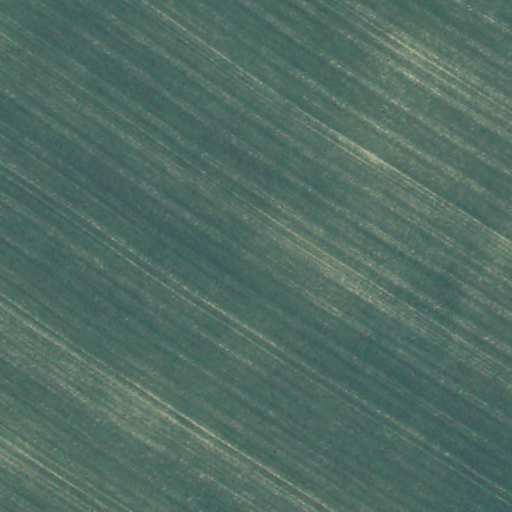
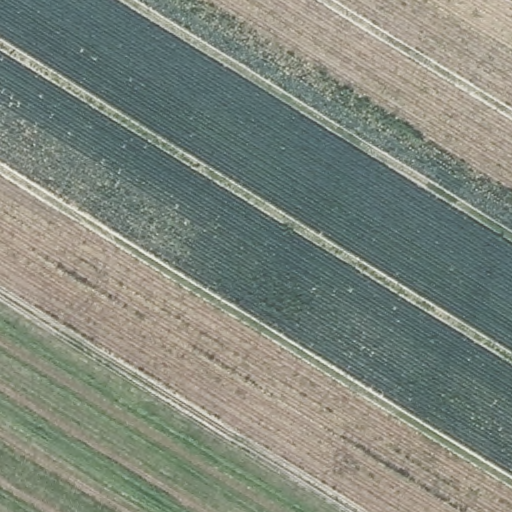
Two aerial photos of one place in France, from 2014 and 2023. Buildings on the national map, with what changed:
[]

